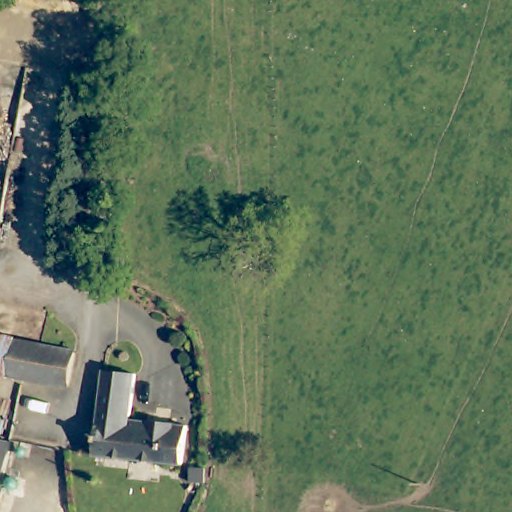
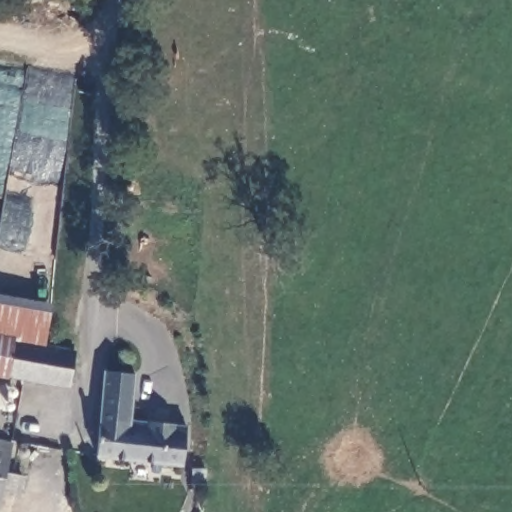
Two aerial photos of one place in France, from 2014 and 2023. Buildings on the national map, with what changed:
new [(0,337),(0,293),(54,302),(45,346),(17,341),(0,337)]
unchanged [(0,374),(0,337),(21,341),(15,376),(0,374)]
unchanged [(21,341),(45,346),(79,352),(74,387),(15,376),(21,341)]
unchanged [(185,425),(184,437),(181,463),(97,451),(104,364),(135,368),(135,420),(143,421),(185,425)]
unchanged [(0,501),(0,439),(12,442),(0,501)]

